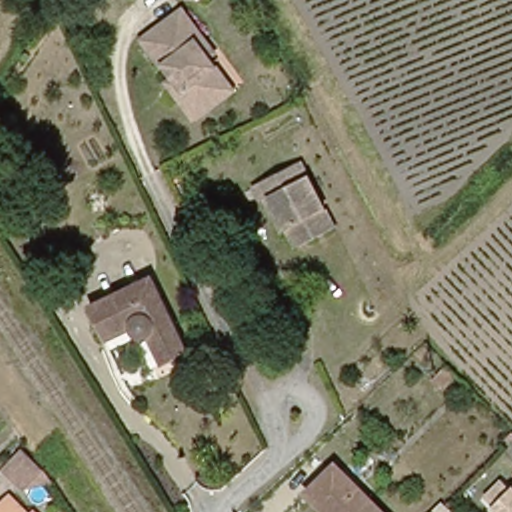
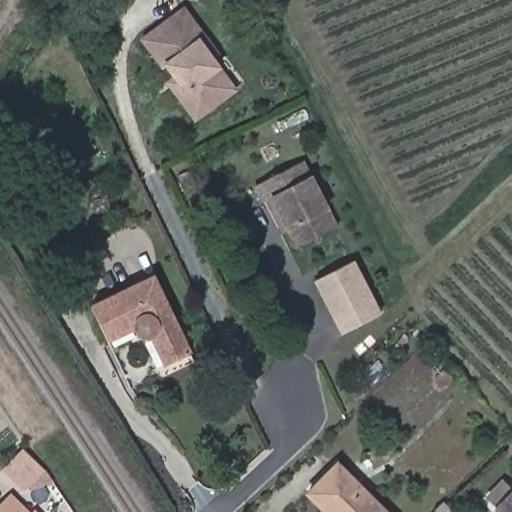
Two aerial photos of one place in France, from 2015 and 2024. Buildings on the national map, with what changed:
unchanged [(182,76),(175,65),(169,69),(146,37),(181,13),(202,43),(212,57),(205,62),(227,94),(196,116),(181,94),(172,82),(182,76)]
unchanged [(259,200),(251,184),(299,159),(333,227),(298,246),(282,215),(270,222),(259,200)]
new [(379,315),(340,335),(312,282),(352,261),(379,315)]
unchanged [(150,271),(191,353),(168,365),(155,338),(149,342),(147,340),(121,285),(150,271)]
unchanged [(147,340),(138,344),(131,328),(106,341),(87,302),(121,285),(147,340)]
unchanged [(21,448),(42,470),(22,489),(1,467),(21,448)]
unchanged [(381,512),(322,512),(303,492),(332,463),(381,512)]
unchanged [(492,503),(485,496),(498,480),(510,487),(512,485),(512,512),(494,512),(490,508),(492,503)]
unchanged [(0,512),(0,511),(12,500),(23,512),(0,512)]

